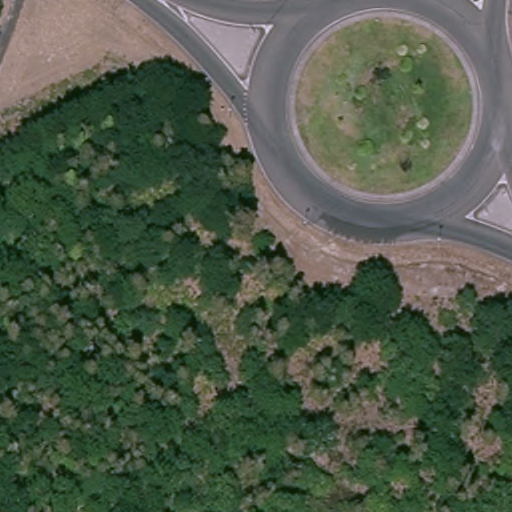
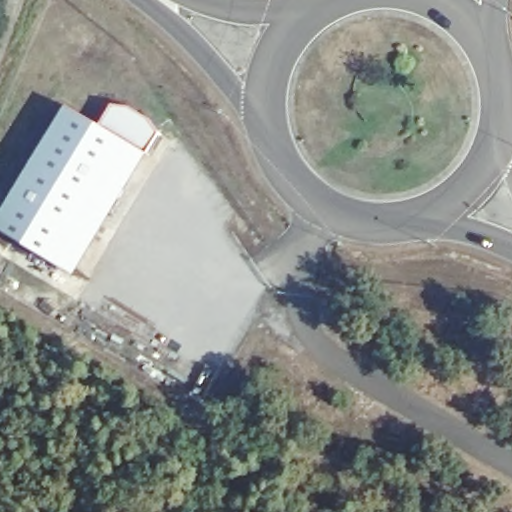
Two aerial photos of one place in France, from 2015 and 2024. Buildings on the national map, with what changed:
new [(66,120),(96,139),(110,116),(117,116),(156,138),(157,144),(143,168),(126,158),(65,260),(4,224),(66,120)]
new [(126,158),(143,168),(81,270),(65,260),(126,158)]

